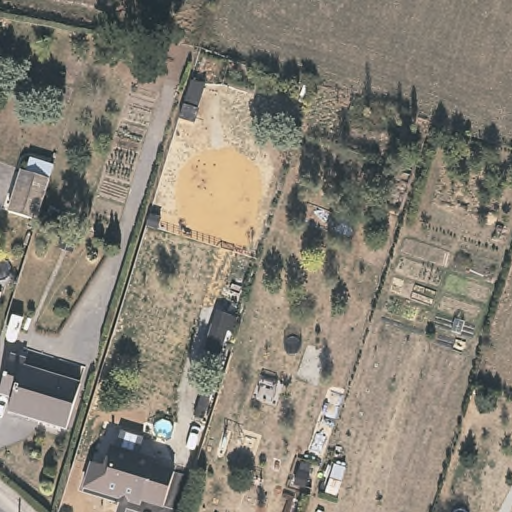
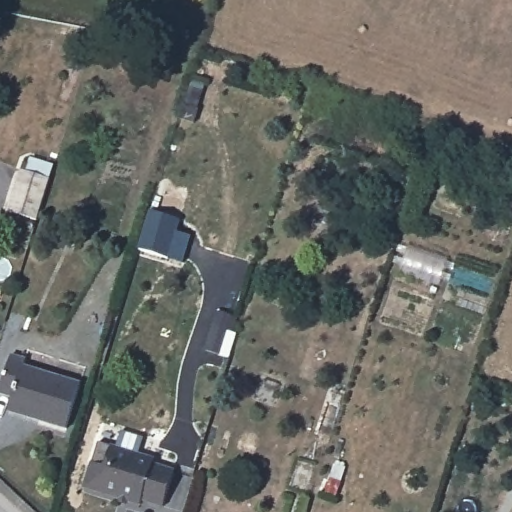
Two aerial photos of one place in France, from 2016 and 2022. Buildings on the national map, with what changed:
unchanged [(49,183),(36,225),(11,217),(25,175),(49,183)]
new [(181,220),(170,259),(138,250),(151,211),(181,220)]
unchanged [(80,388),(66,432),(10,414),(13,404),(0,399),(12,361),(25,365),(24,370),(80,388)]
unchanged [(166,498),(155,495),(148,493),(146,498),(87,479),(96,454),(106,457),(114,432),(120,434),(163,448),(160,456),(167,458),(177,461),(166,498)]

